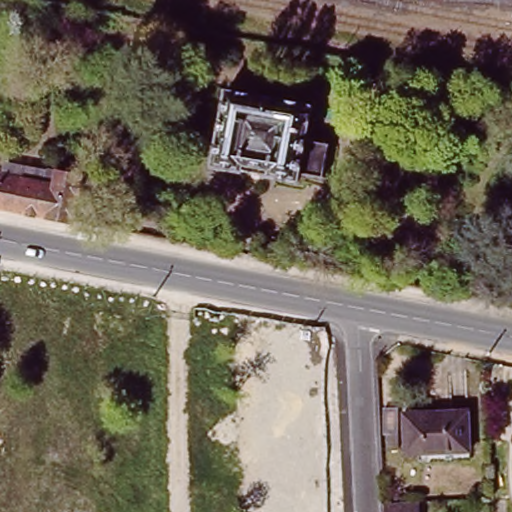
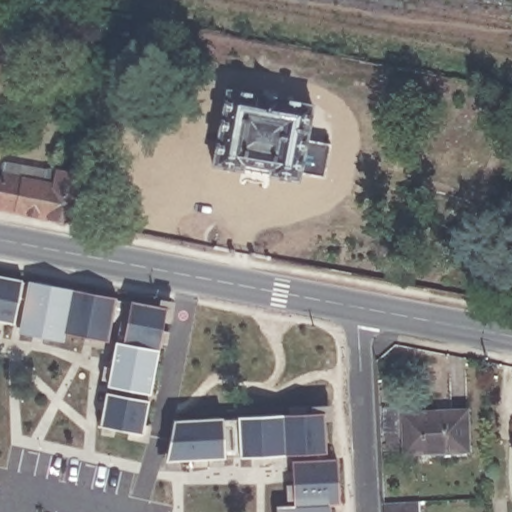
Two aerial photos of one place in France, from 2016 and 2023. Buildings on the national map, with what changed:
unchanged [(292,174),(290,182),(205,165),(220,88),(252,95),(252,93),(271,96),(270,98),(304,106),(298,137),(322,143),(315,178),(292,174)]
unchanged [(1,159),(55,170),(80,175),(70,221),(0,208),(0,165),(1,159)]
new [(13,324),(0,322),(0,325),(0,275),(22,279),(13,324)]
new [(146,443),(125,440),(125,434),(115,433),(114,437),(99,435),(100,425),(114,343),(106,342),(102,342),(101,348),(82,346),(82,338),(64,336),(64,342),(17,335),(26,281),(72,289),(132,300),(159,305),(159,298),(175,301),(172,324),(165,322),(144,433),(146,443)]
new [(172,420),(310,412),(309,404),(330,404),(331,419),(325,420),(327,452),(240,456),(222,457),(165,459),(172,420)]
unchanged [(465,404),(467,449),(402,452),(400,407),(465,404)]
new [(340,503),(327,504),(328,512),(275,512),(275,506),(293,505),(292,461),(337,459),(340,503)]
unchanged [(414,497),(415,512),(380,512),(379,499),(414,497)]

